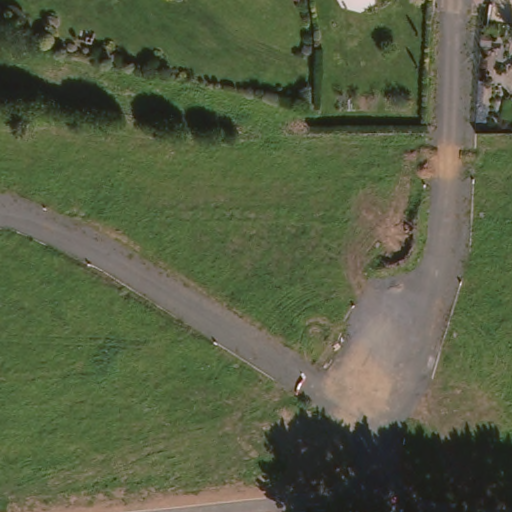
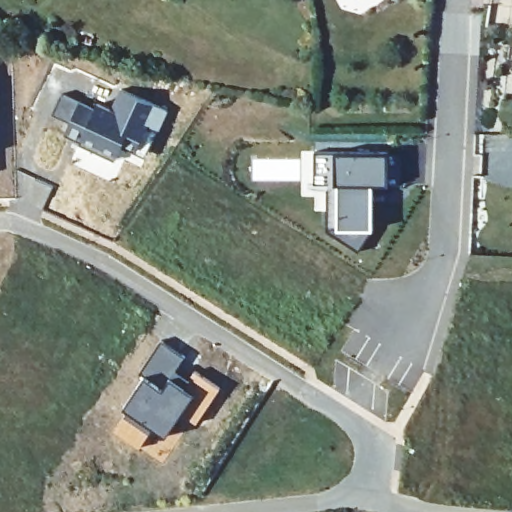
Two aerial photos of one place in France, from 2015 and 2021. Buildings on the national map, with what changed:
new [(94,108),(97,103),(111,110),(122,89),(168,110),(146,157),(121,146),(118,152),(116,161),(98,153),(80,145),(81,142),(65,135),(71,122),(52,114),(61,94),(94,108)]
new [(335,152),(388,152),(400,153),(400,183),(388,183),(375,182),(374,227),(359,250),(327,229),(328,184),(314,184),(315,152),(335,152)]
new [(140,392),(136,389),(144,377),(139,373),(161,340),(186,357),(172,378),(185,387),(195,372),(221,389),(197,424),(177,411),(161,434),(152,428),(138,449),(113,431),(140,392)]

